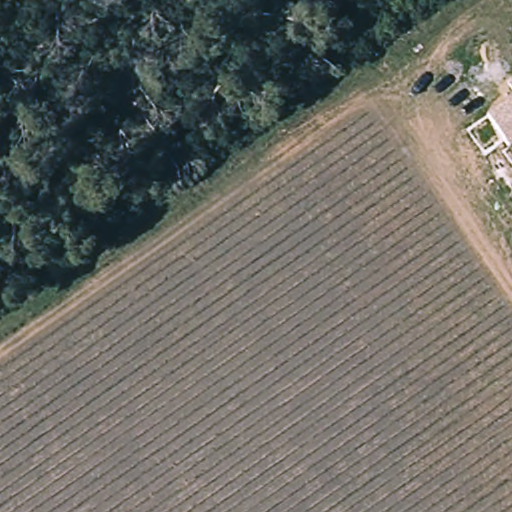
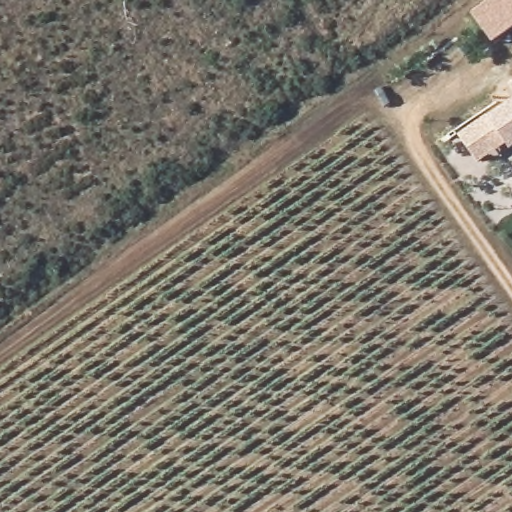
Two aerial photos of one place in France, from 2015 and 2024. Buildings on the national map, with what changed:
new [(488,0),(512,0),(512,26),(492,41),(471,12),(488,0)]
unchanged [(509,83),(512,81),(512,87),(509,83)]
unchanged [(509,148),(487,115),(512,97),(512,146),(509,148)]
new [(506,143),(478,160),(458,134),(487,115),(506,143)]

